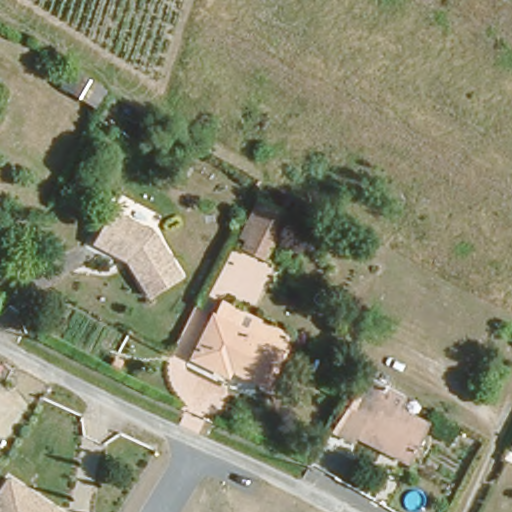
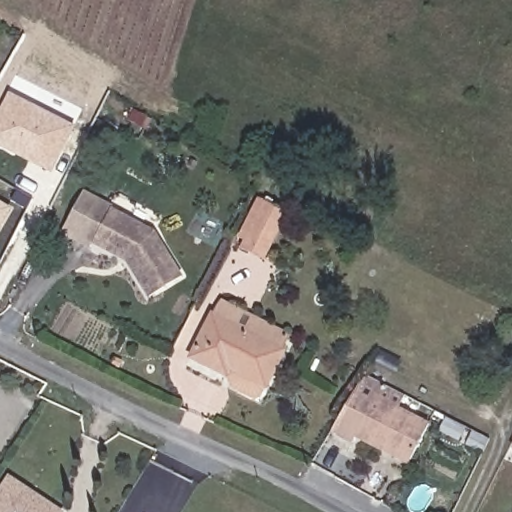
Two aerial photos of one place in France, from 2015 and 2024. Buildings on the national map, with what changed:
new [(0,144),(0,116),(10,95),(72,127),(50,169),(0,144)]
new [(106,218),(102,216),(92,248),(60,232),(84,190),(114,206),(106,218)]
unchanged [(281,207),(278,213),(261,246),(242,236),(259,203),(262,197),(281,207)]
new [(12,208),(0,229),(0,201),(12,208)]
unchanged [(102,216),(150,234),(180,276),(150,300),(126,266),(91,251),(102,216)]
unchanged [(221,297),(291,337),(283,350),(214,311),(221,297)]
unchanged [(283,350),(263,385),(230,366),(225,373),(190,353),(214,311),(283,350)]
unchanged [(368,363),(378,379),(387,385),(380,398),(427,427),(406,463),(356,432),(351,440),(330,426),(368,363)]
unchanged [(512,447),(510,445),(512,441),(512,447)]
unchanged [(44,512),(0,512),(0,494),(4,488),(44,512)]

